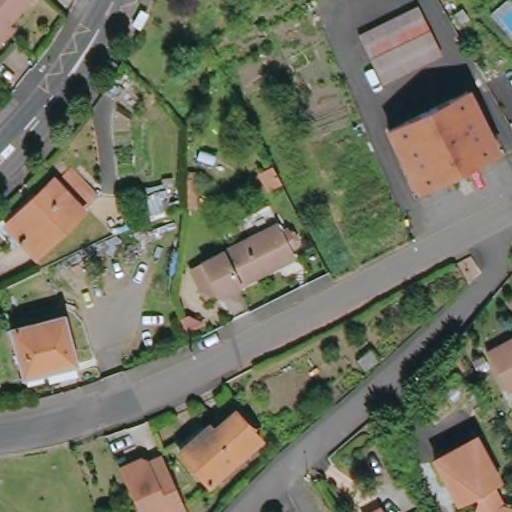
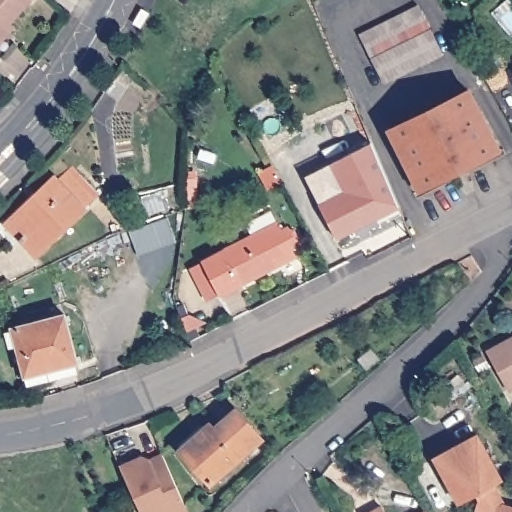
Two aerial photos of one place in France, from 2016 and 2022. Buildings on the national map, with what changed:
unchanged [(0,0),(30,0),(0,34),(0,0)]
unchanged [(417,7),(443,54),(383,84),(358,36),(417,7)]
unchanged [(469,17),(460,23),(454,15),(464,10),(469,17)]
unchanged [(468,92),(497,151),(419,191),(389,131),(468,92)]
new [(321,207),(348,193),(334,165),(374,145),(400,207),(337,239),(321,207)]
unchanged [(26,209),(55,180),(58,182),(72,167),(98,196),(57,236),(26,209)]
unchanged [(57,236),(37,255),(7,226),(26,209),(57,236)]
unchanged [(202,262),(278,225),(295,256),(220,296),(202,262)]
unchanged [(77,363),(23,378),(12,330),(65,316),(77,363)]
unchanged [(508,392),(487,353),(512,339),(512,390),(508,392)]
unchanged [(378,360),(366,370),(358,362),(372,351),(378,360)]
unchanged [(210,485),(180,452),(210,425),(215,431),(237,412),(261,440),(210,485)]
unchanged [(494,486),(505,505),(512,507),(512,512),(482,512),(477,511),(480,501),(477,495),(460,505),(435,461),(477,438),(497,475),(494,486)]
unchanged [(163,454),(168,465),(188,511),(186,512),(173,512),(172,512),(171,512),(140,512),(120,467),(142,458),(152,460),(163,454)]
unchanged [(384,512),(373,512),(382,507),(384,512)]

